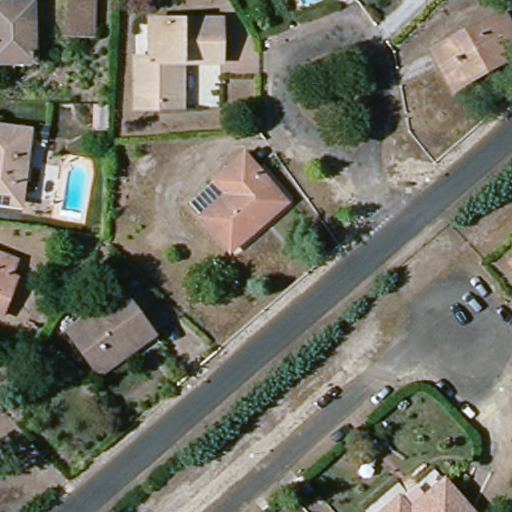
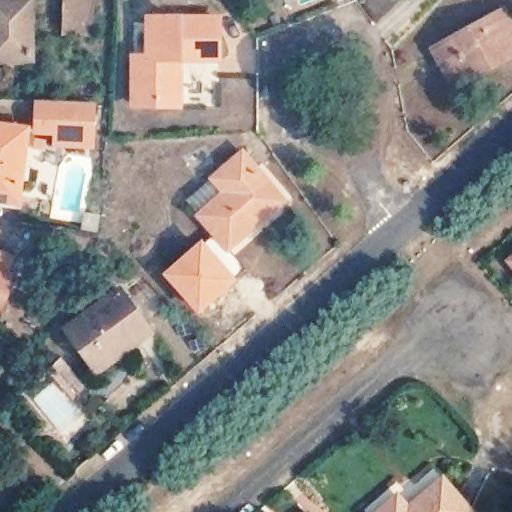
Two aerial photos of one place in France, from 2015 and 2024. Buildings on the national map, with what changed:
unchanged [(91,35),(66,33),(68,0),(93,0),(91,35)]
unchanged [(35,55),(0,55),(0,3),(34,3),(35,55)]
unchanged [(136,85),(137,52),(152,52),(153,14),(225,14),(224,56),(187,56),(186,102),(164,102),(136,102),(136,85)]
unchanged [(441,54),(512,16),(512,64),(461,92),(441,54)]
new [(55,149),(55,136),(35,135),(37,101),(98,103),(96,150),(55,149)]
unchanged [(27,132),(18,202),(0,199),(0,128),(27,132)]
unchanged [(224,184),(252,159),(292,206),(239,252),(211,220),(236,198),(224,184)]
new [(202,238),(239,279),(198,316),(160,274),(202,238)]
unchanged [(17,259),(10,277),(17,279),(5,309),(0,306),(0,252),(17,259)]
unchanged [(119,357),(103,369),(70,325),(124,284),(151,322),(156,329),(119,357)]
unchanged [(452,479),(482,512),(388,512),(408,496),(418,507),(452,479)]
unchanged [(319,512),(316,512),(317,511),(319,512)]

